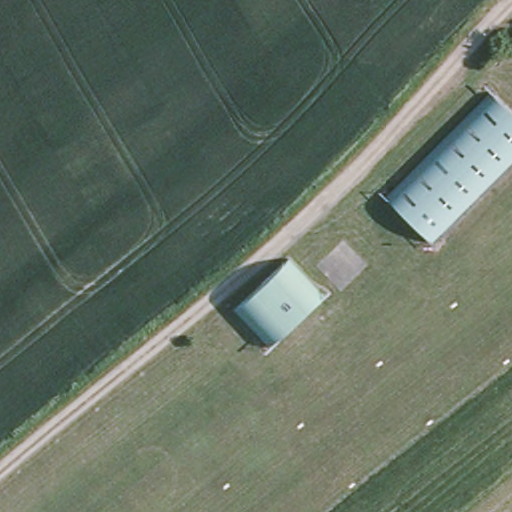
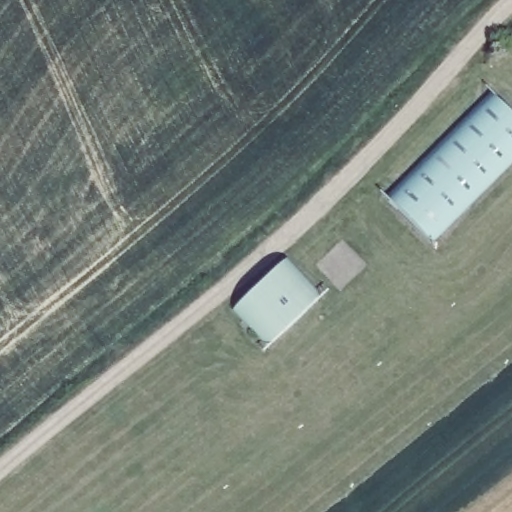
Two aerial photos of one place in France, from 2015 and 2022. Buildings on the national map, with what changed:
unchanged [(485,86),(512,113),(512,153),(428,237),(381,191),(485,86)]
unchanged [(288,257),(323,294),(268,346),(233,309),(288,257)]

